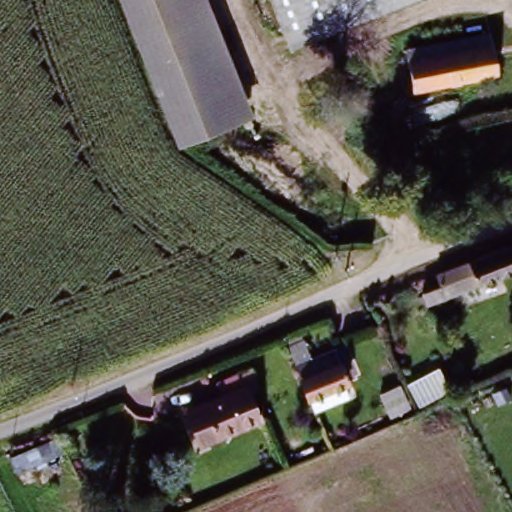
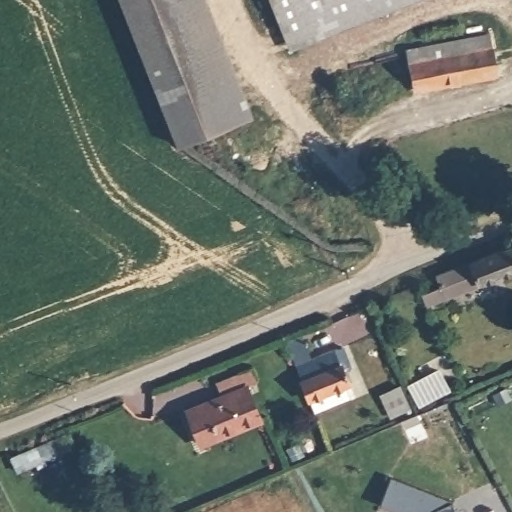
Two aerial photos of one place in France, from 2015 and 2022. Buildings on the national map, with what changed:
unchanged [(231,97),(233,102),(240,123),(172,147),(114,0),(192,0),(231,97)]
unchanged [(310,34),(279,46),(262,0),(407,0),(310,34)]
unchanged [(497,72),(415,92),(405,53),(486,33),(497,72)]
unchanged [(425,305),(420,292),(439,283),(435,272),(510,241),(512,246),(512,268),(425,305)]
unchanged [(304,401),(292,368),(285,347),(305,338),(314,360),(335,352),(347,384),(304,401)]
unchanged [(448,390),(419,405),(407,381),(437,368),(448,390)]
unchanged [(219,379),(243,372),(260,423),(197,440),(187,404),(224,394),(219,379)]
unchanged [(390,419),(378,394),(399,383),(410,407),(390,419)]
unchanged [(47,482),(40,461),(22,470),(14,456),(57,435),(70,461),(60,465),(65,474),(47,482)]
new [(447,498),(454,512),(401,512),(375,502),(386,474),(447,498)]

